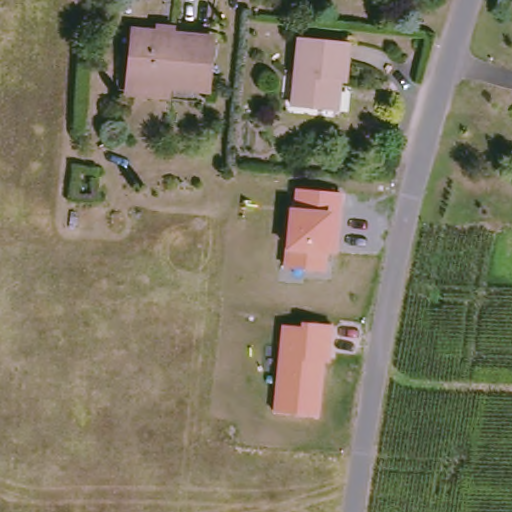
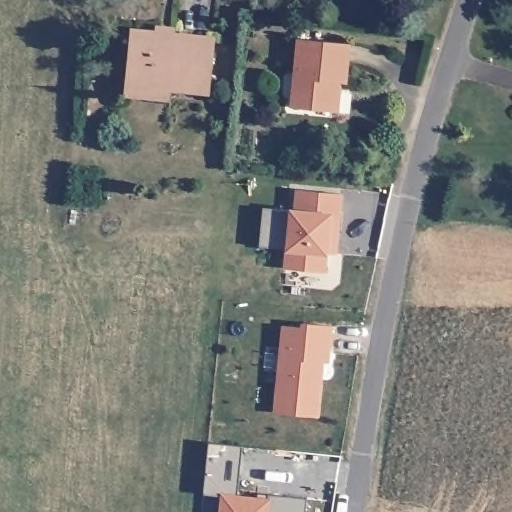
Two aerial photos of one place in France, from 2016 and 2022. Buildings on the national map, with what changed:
unchanged [(177,79),(175,97),(120,91),(127,26),(163,30),(165,24),(181,27),(180,33),(215,38),(210,83),(177,79)]
unchanged [(335,112),(295,107),(304,37),(352,42),(348,86),(344,86),(342,113),(335,112)]
unchanged [(285,251),(290,208),(292,188),(343,193),(337,253),(329,252),(326,271),(283,267),(285,251)]
unchanged [(282,324),(300,327),(301,322),(333,326),(330,363),(325,362),(320,415),(272,409),(282,324)]
new [(238,496),(268,500),(269,494),(308,499),(306,512),(221,512),(222,496),(203,493),(210,442),(244,446),(238,496)]

